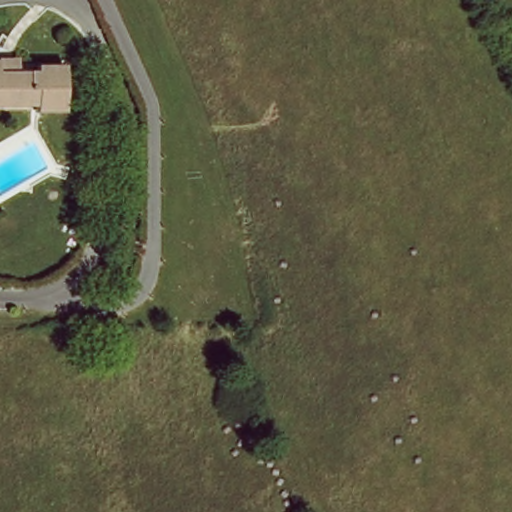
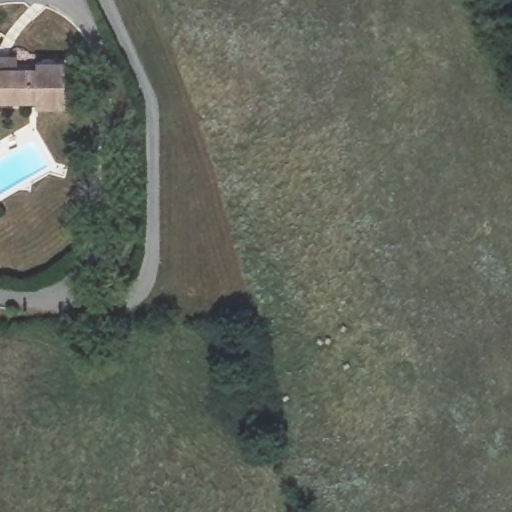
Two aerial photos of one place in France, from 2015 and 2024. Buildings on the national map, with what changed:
unchanged [(31,57),(59,59),(57,104),(31,104),(31,95),(0,93),(0,63),(32,65),(31,57)]

